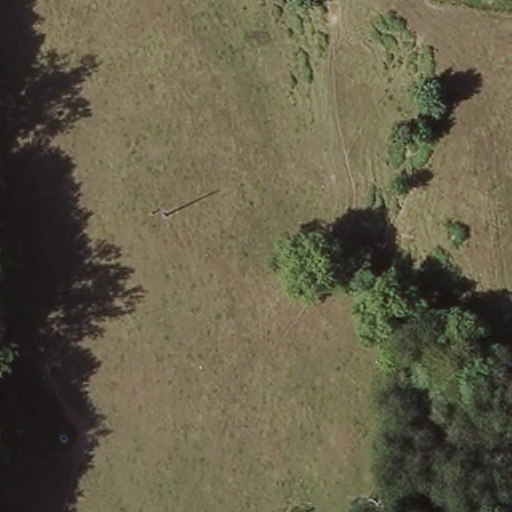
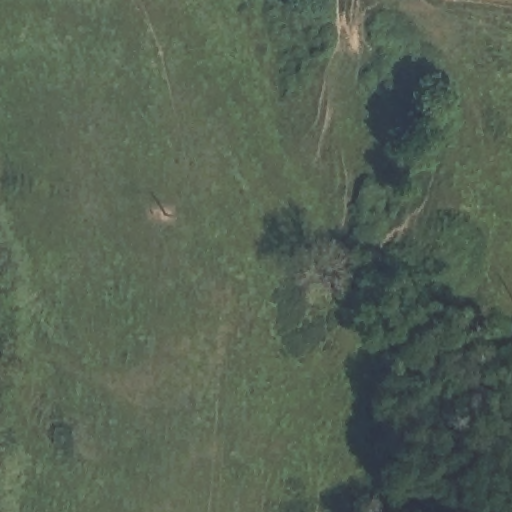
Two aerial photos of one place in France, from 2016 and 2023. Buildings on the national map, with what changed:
[]

